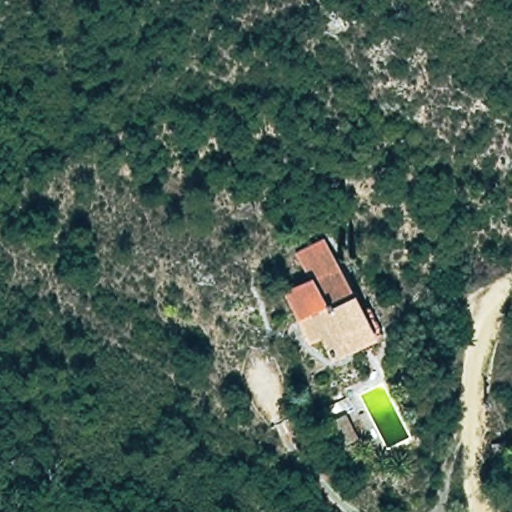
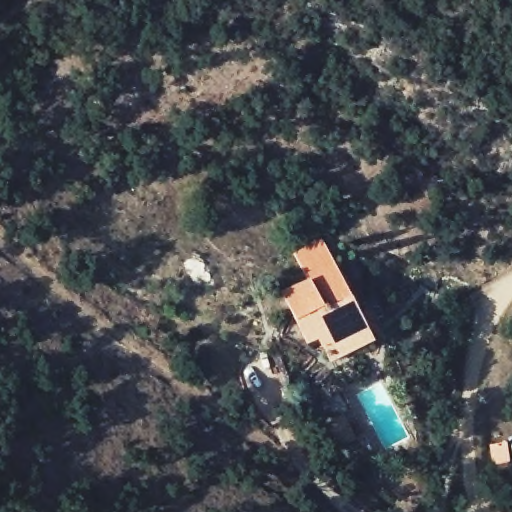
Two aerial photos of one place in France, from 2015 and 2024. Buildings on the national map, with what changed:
unchanged [(290,258),(321,244),(333,270),(338,267),(359,312),(369,307),(383,335),(324,364),(316,348),(306,353),(278,298),(306,285),(290,258)]
unchanged [(358,442),(328,450),(319,425),(346,416),(358,442)]

